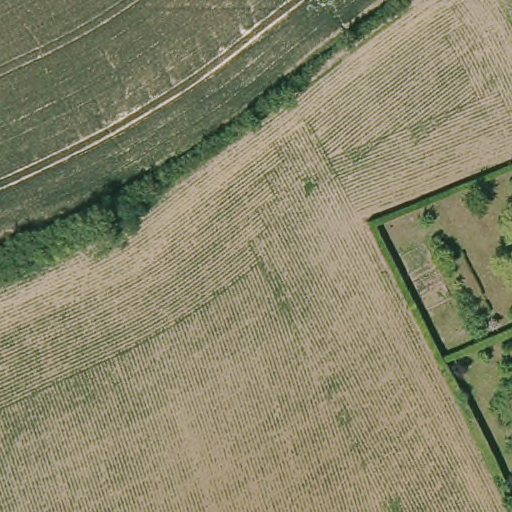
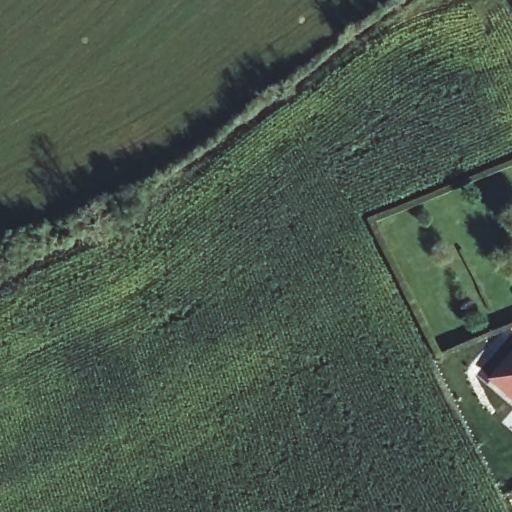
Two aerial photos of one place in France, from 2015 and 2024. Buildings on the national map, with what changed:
new [(512,355),(511,352),(512,351),(512,402),(488,381),(512,355)]

